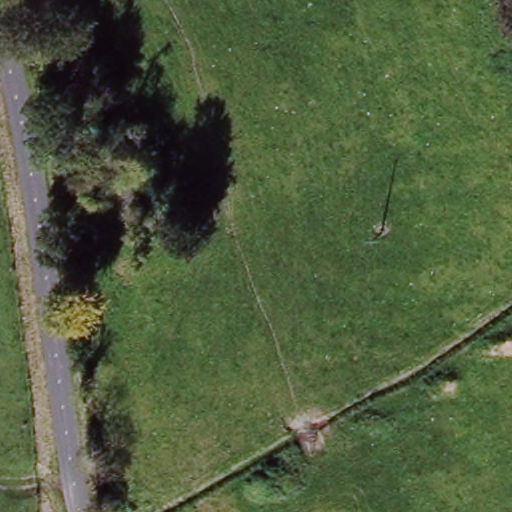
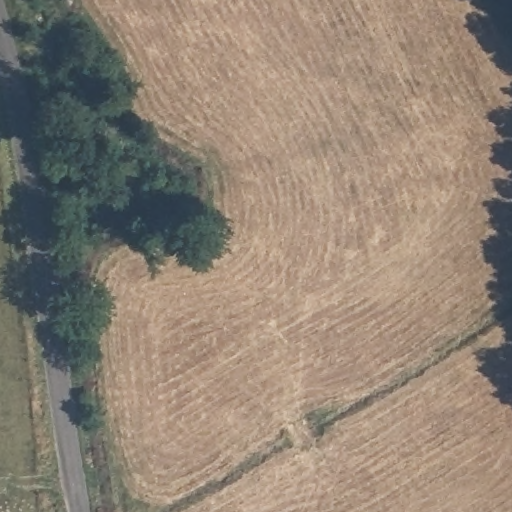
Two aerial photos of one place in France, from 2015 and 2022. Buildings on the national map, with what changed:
[]

